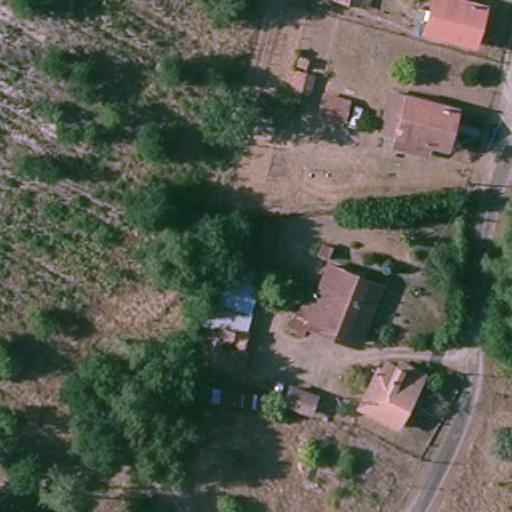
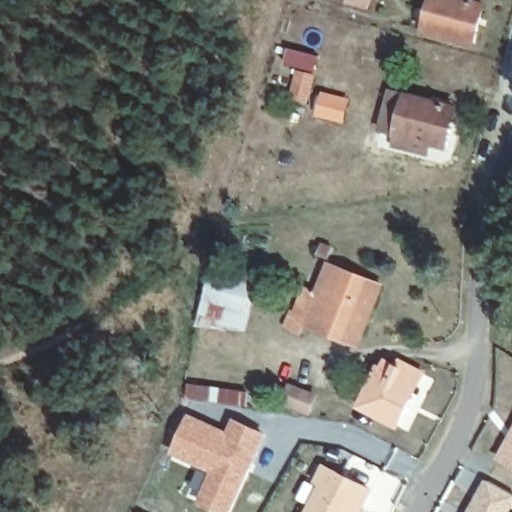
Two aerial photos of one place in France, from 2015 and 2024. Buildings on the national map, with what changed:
unchanged [(368,7),(345,0),(370,0),(368,7)]
unchanged [(483,7),(472,45),(425,32),(434,0),(461,0),(483,7)]
unchanged [(318,81),(311,104),(294,99),(301,76),(318,81)]
unchanged [(397,141),(400,128),(383,123),(392,88),(455,106),(445,141),(430,136),(427,149),(397,141)]
unchanged [(346,98),(339,121),(319,115),(326,92),(346,98)]
demolished [(302,113),(296,131),(279,125),(285,107),(302,113)]
unchanged [(246,328),(208,324),(188,322),(192,295),(214,298),(221,264),(254,268),(246,328)]
unchanged [(298,334),(301,329),(330,265),(367,282),(382,288),(357,345),(316,333),(313,339),(298,334)]
demolished [(246,328),(242,362),(204,357),(208,324),(246,328)]
unchanged [(402,427),(365,407),(385,370),(387,371),(391,363),(402,369),(405,365),(429,378),(402,427)]
unchanged [(255,403),(193,394),(195,380),(257,389),(255,403)]
unchanged [(308,413),(286,401),(293,387),(316,398),(308,413)]
new [(226,430),(232,418),(267,434),(232,512),(213,512),(194,504),(209,473),(169,454),(187,413),(226,430)]
new [(512,429),(512,469),(495,460),(512,429)]
new [(314,480),(322,465),(368,489),(357,512),(304,512),(319,483),(314,480)]
new [(512,493),(512,501),(506,512),(469,512),(486,480),(512,493)]

